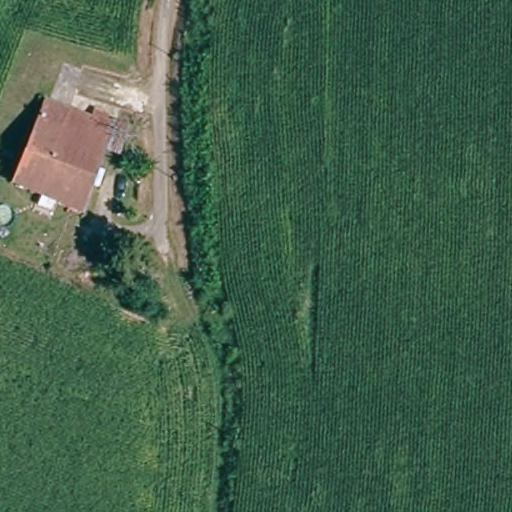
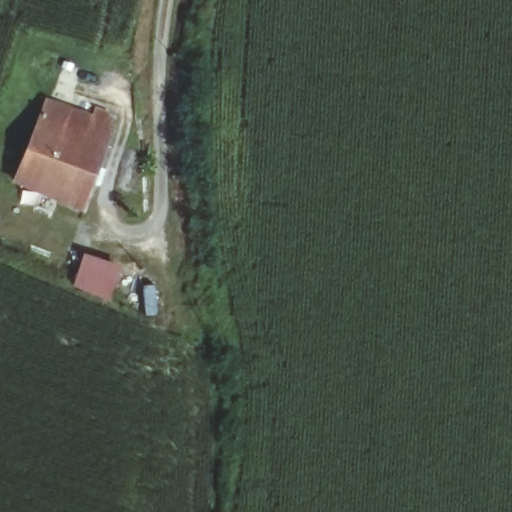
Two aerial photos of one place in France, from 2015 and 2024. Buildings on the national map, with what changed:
unchanged [(123,133),(115,151),(100,144),(76,200),(14,171),(40,106),(40,104),(45,95),(67,106),(68,107),(96,119),(108,125),(123,133)]
new [(121,266),(111,299),(80,290),(84,280),(76,278),(85,255),(121,266)]

